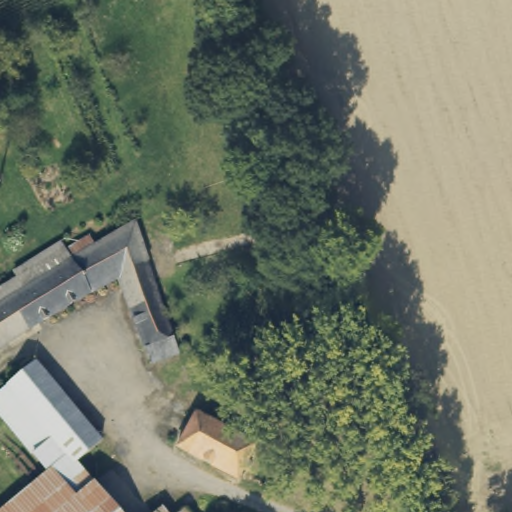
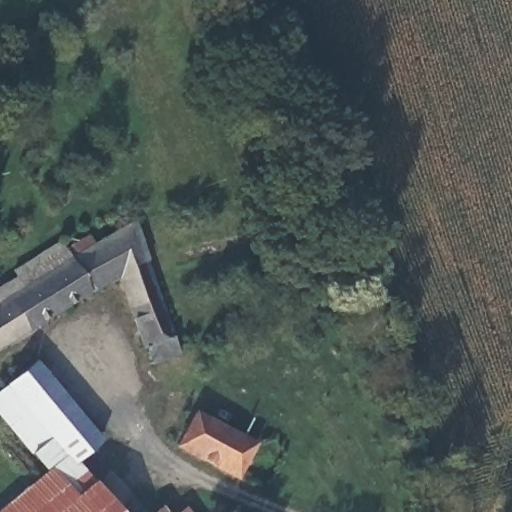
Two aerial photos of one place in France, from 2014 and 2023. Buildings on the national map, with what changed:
unchanged [(180,271),(168,235),(265,213),(275,247),(180,271)]
unchanged [(135,225),(179,355),(152,367),(118,281),(90,297),(71,266),(70,264),(135,225)]
unchanged [(14,273),(61,247),(70,264),(24,291),(19,282),(14,273)]
unchanged [(71,266),(90,297),(45,324),(0,350),(0,292),(16,283),(19,282),(24,291),(70,264),(71,266)]
unchanged [(106,445),(79,467),(78,468),(14,391),(13,390),(41,366),(106,445)]
unchanged [(0,410),(0,402),(14,391),(78,468),(79,467),(118,512),(11,512),(54,477),(0,410)]
unchanged [(177,446),(184,432),(196,412),(256,445),(236,477),(177,446)]

